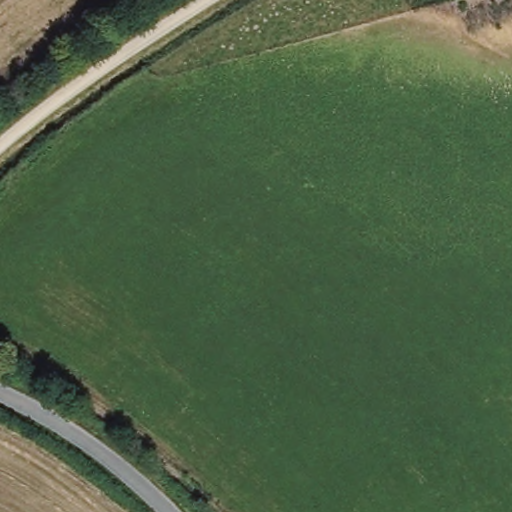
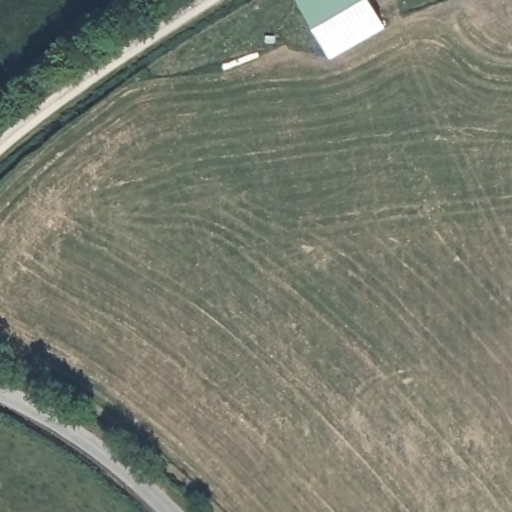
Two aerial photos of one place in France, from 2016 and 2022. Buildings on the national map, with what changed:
new [(331,53),(301,0),(373,0),(385,21),(331,53)]

